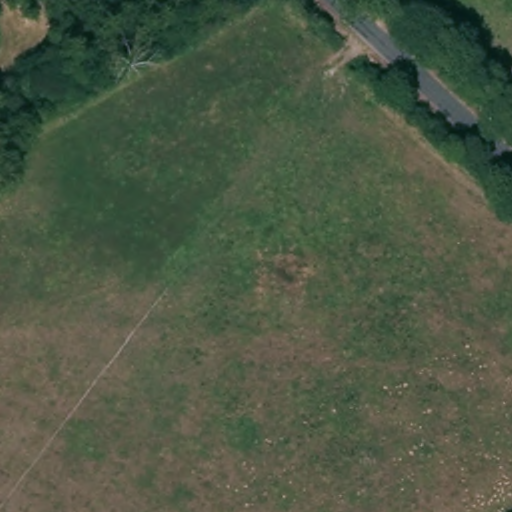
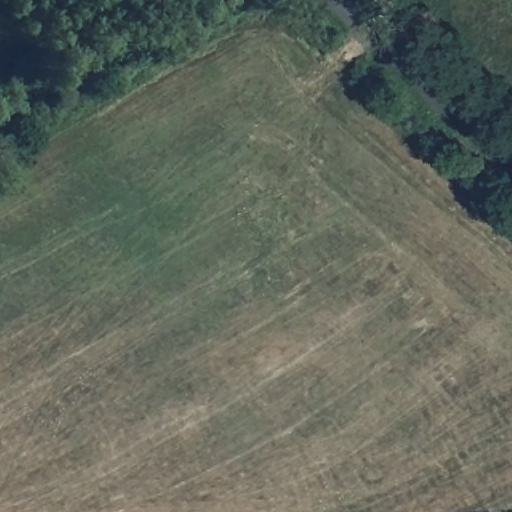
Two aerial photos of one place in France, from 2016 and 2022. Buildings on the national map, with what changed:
[]

